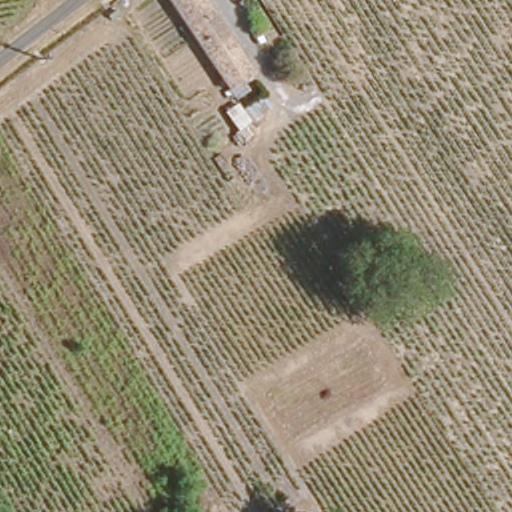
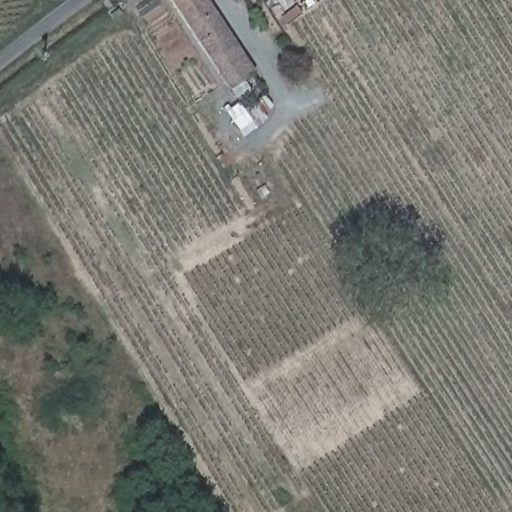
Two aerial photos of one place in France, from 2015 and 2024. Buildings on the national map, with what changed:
unchanged [(229,82),(218,64),(174,0),(208,0),(240,49),(252,67),(229,82)]

